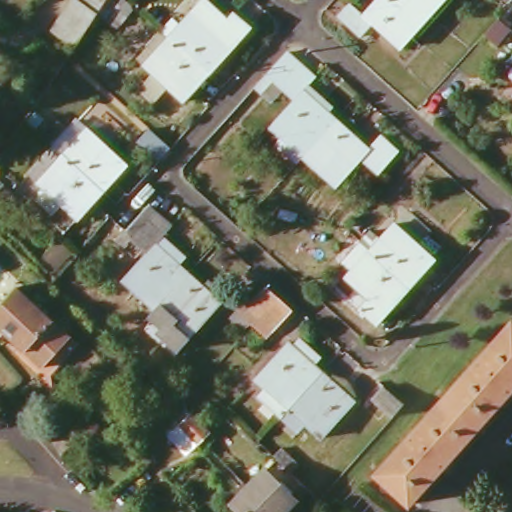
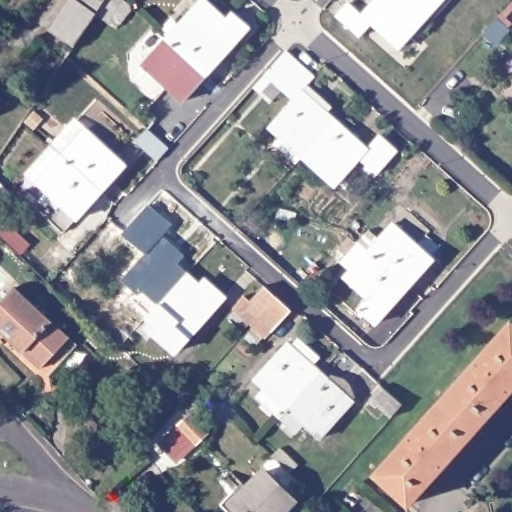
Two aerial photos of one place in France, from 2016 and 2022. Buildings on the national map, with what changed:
unchanged [(95,10),(72,46),(47,28),(68,0),(123,0),(130,6),(114,26),(95,10)]
unchanged [(369,24),(357,36),(335,16),(347,3),(361,16),(375,0),(410,0),(426,14),(397,48),(369,24)]
unchanged [(439,0),(426,14),(410,0),(439,0)]
unchanged [(165,38),(190,10),(212,31),(231,10),(248,24),(222,54),(205,73),(165,38)]
unchanged [(483,32),(496,18),(507,29),(495,42),(483,32)]
unchanged [(181,101),(165,87),(152,103),(127,81),(154,50),(147,44),(158,31),(165,38),(205,73),(181,101)]
unchanged [(279,136),(267,126),(292,99),(269,78),(262,86),(257,82),(285,51),(312,76),(304,85),(330,108),(327,112),(334,119),(300,156),(295,161),(274,142),(279,136)]
unchanged [(334,119),(367,149),(379,136),(395,151),(375,174),(357,159),(333,185),(300,156),(334,119)]
unchanged [(50,150),(74,123),(114,158),(90,185),(50,150)]
unchanged [(52,227),(37,213),(49,199),(25,178),(50,150),(90,185),(52,227)]
unchanged [(120,280),(142,254),(127,240),(130,236),(123,230),(145,205),(168,226),(159,236),(180,257),(175,264),(185,274),(152,310),(120,280)]
unchanged [(354,242),(363,231),(373,240),(387,223),(410,244),(419,235),(432,247),(424,256),(427,258),(402,286),(354,242)]
unchanged [(386,304),(368,322),(352,307),(360,297),(339,278),(354,261),(344,252),(354,242),(402,286),(386,304)]
unchanged [(185,274),(199,286),(205,280),(216,291),(210,297),(217,304),(173,353),(140,324),(152,310),(185,274)]
unchanged [(4,328),(0,330),(0,294),(10,283),(70,339),(44,369),(17,347),(20,343),(4,328)]
unchanged [(262,337),(249,326),(245,329),(226,311),(237,299),(244,305),(261,286),(274,298),(287,309),(262,337)]
unchanged [(512,324),(512,386),(407,504),(374,474),(509,321),(512,324)]
unchanged [(256,389),(262,382),(254,374),(286,339),(290,341),(295,336),(315,355),(311,361),(319,367),(286,403),(280,410),(256,389)]
unchanged [(286,403),(319,367),(325,373),(330,370),(345,375),(347,378),(354,391),(353,393),(350,396),(352,398),(320,434),(286,403)]
unchanged [(380,387),(400,405),(389,417),(383,413),(377,421),(362,407),(380,387)]
unchanged [(190,414),(206,432),(183,453),(167,434),(190,414)]
unchanged [(271,451),(279,443),(296,459),(289,468),(271,451)]
unchanged [(220,504),(241,483),(247,488),(262,472),(291,500),(280,512),(228,512),(220,504)]

